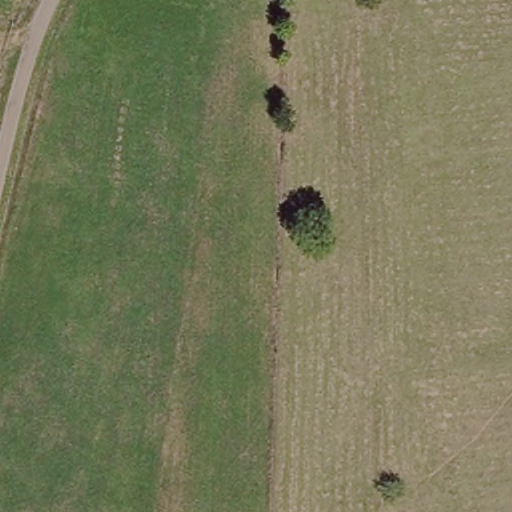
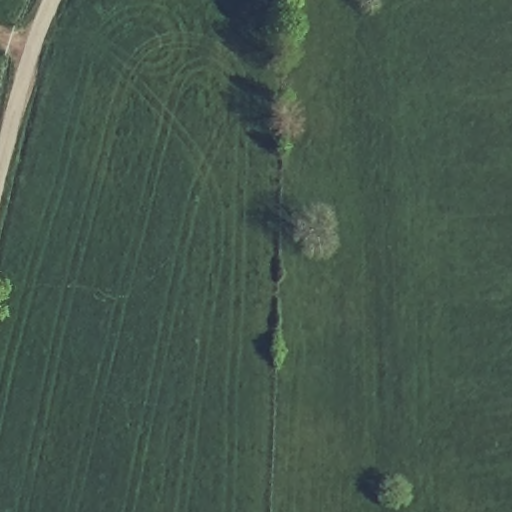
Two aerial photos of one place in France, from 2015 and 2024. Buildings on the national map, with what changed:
[]

